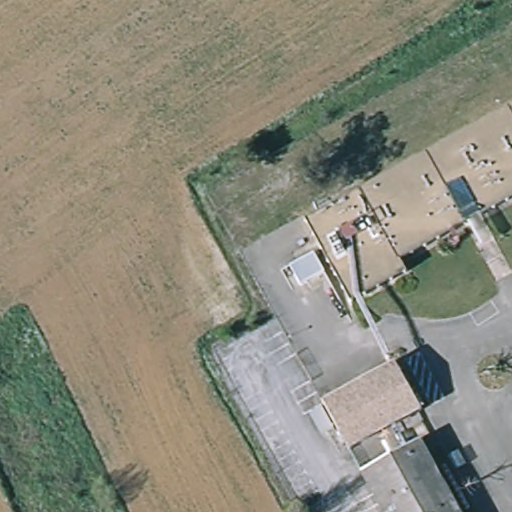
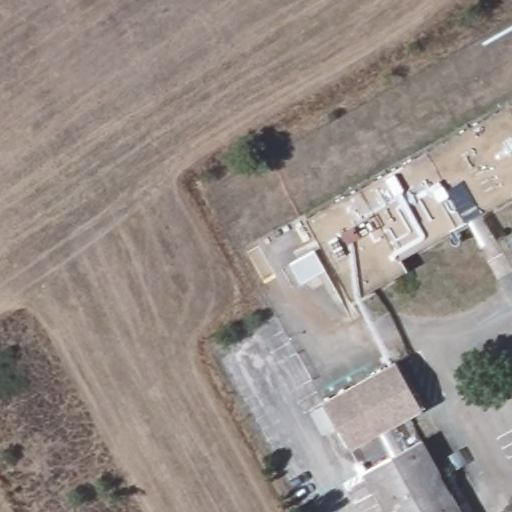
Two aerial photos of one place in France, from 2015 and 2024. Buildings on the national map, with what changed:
unchanged [(410,262),(416,275),(354,309),(305,224),(512,106),(512,204),(410,262)]
unchanged [(414,418),(348,452),(321,406),(389,371),(414,418)]
unchanged [(396,512),(376,471),(432,442),(467,512),(396,512)]

